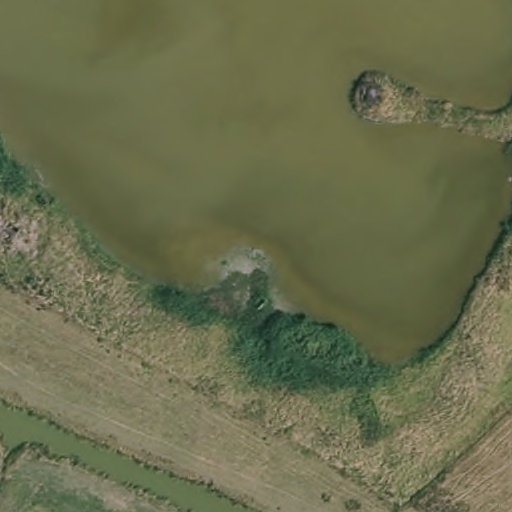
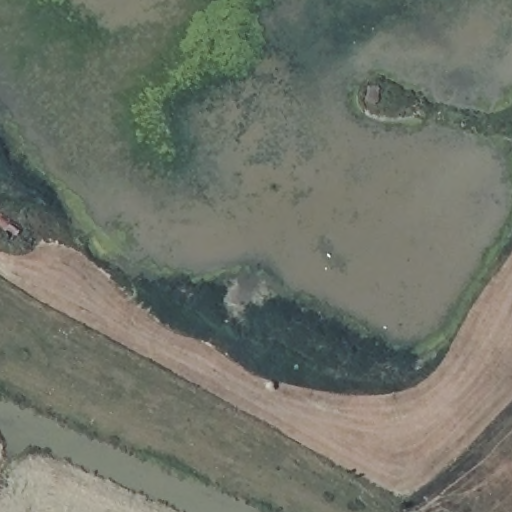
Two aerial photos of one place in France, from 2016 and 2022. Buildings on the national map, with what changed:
unchanged [(382,105),(368,105),(368,90),(379,90),(382,105)]

